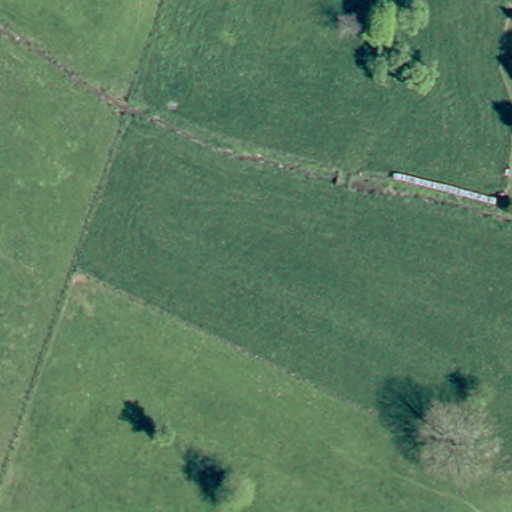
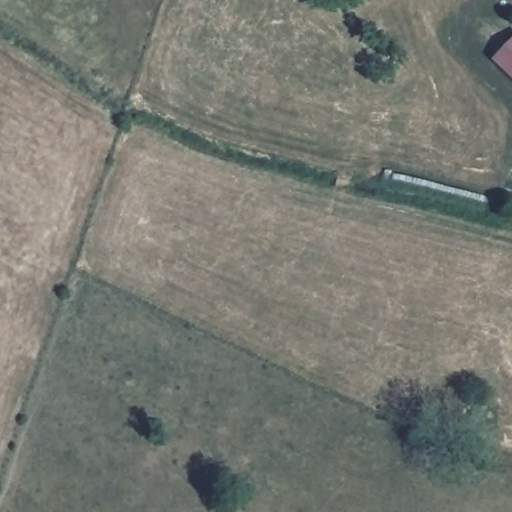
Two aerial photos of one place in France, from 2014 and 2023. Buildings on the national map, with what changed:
new [(493,59),(512,39),(512,78),(493,59)]

